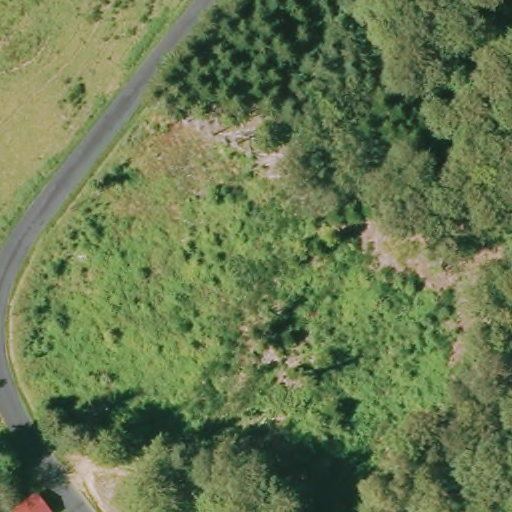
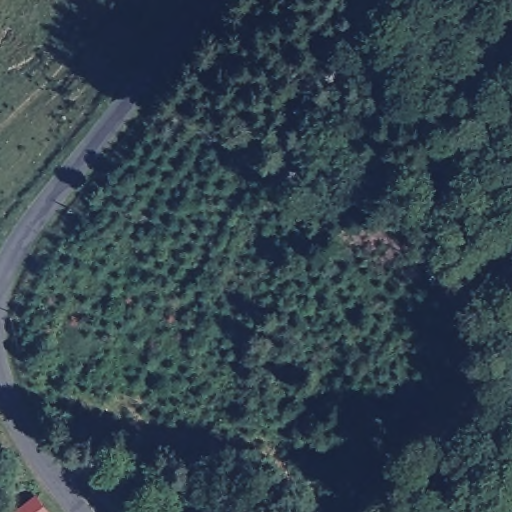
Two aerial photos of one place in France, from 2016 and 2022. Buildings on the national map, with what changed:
unchanged [(56,510),(54,512),(19,512),(19,511),(45,494),(56,510)]

